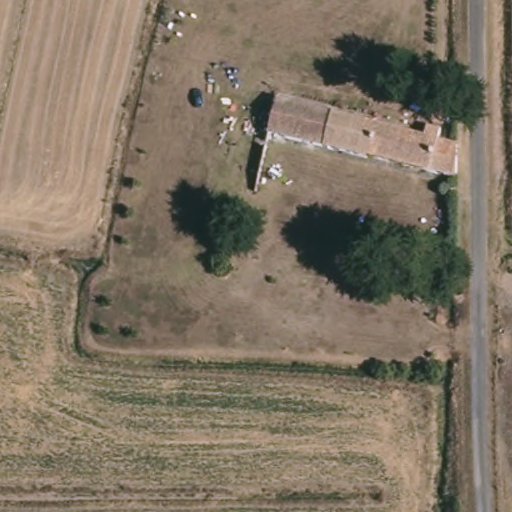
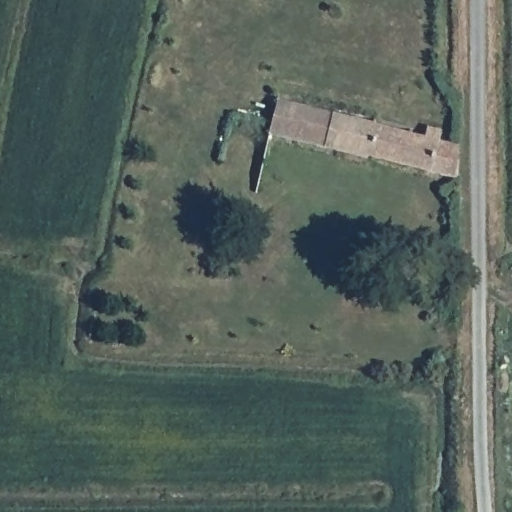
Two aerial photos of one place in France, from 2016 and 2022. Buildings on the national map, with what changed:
unchanged [(278,97),(376,120),(375,124),(428,136),(431,125),(443,128),(441,139),(457,143),(458,182),(270,134),(278,97)]

